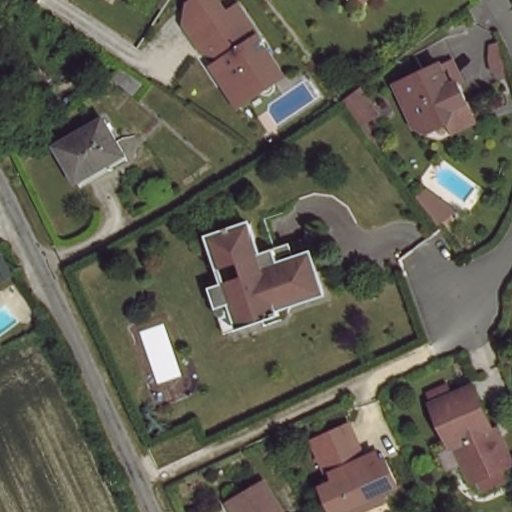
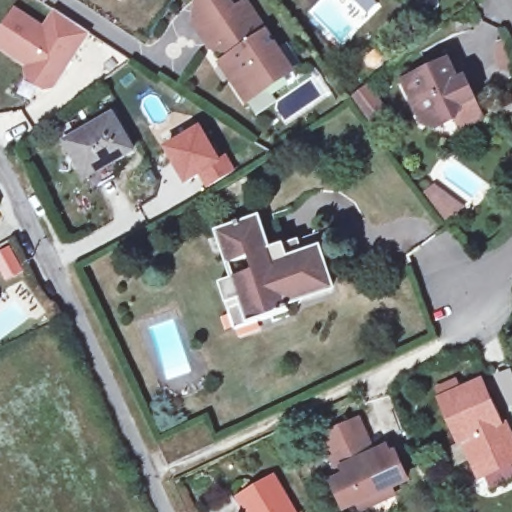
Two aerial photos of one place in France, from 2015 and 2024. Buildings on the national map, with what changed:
unchanged [(230,52),(209,48),(191,21),(195,1),(197,0),(225,0),(233,10),(244,2),(276,49),(291,71),(281,78),(245,101),(230,78),(220,63),(231,54),(230,52)]
new [(43,30),(51,18),(59,24),(64,16),(87,32),(50,88),(43,89),(27,78),(25,70),(29,65),(0,46),(0,32),(14,11),(43,30)]
unchanged [(448,119),(430,128),(414,123),(396,83),(439,63),(441,65),(452,60),(460,78),(457,79),(466,100),(464,101),(468,110),(448,119)]
unchanged [(132,150),(86,177),(66,141),(113,114),(132,150)]
new [(201,124),(221,156),(228,153),(238,170),(206,189),(198,178),(185,186),(163,149),(201,124)]
unchanged [(231,314),(221,283),(256,272),(253,258),(231,264),(221,233),(235,229),(235,225),(244,222),(246,225),(261,220),(269,249),(285,245),(316,236),(321,252),(333,292),(290,305),(292,313),(260,322),(236,329),(231,314)]
unchanged [(481,477),(465,440),(459,442),(442,399),(484,383),(502,424),(508,422),(512,433),(512,463),(481,477)]
unchanged [(341,508),(330,482),(337,479),(334,472),(318,436),(348,423),(355,419),(370,454),(383,449),(387,457),(392,454),(403,481),(387,488),(390,496),(376,502),(357,509),(354,502),(341,508)]
unchanged [(296,512),(248,512),(241,498),(277,477),(296,512)]

